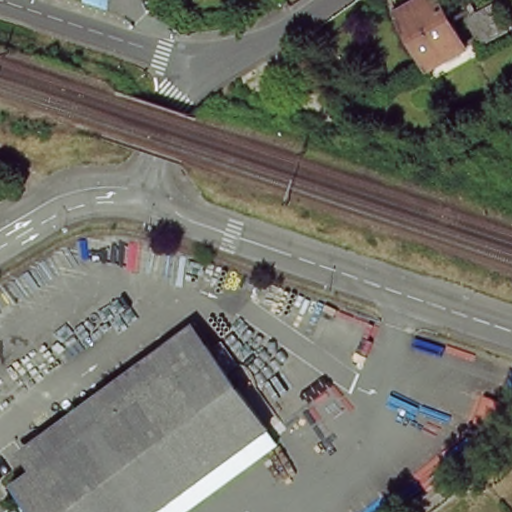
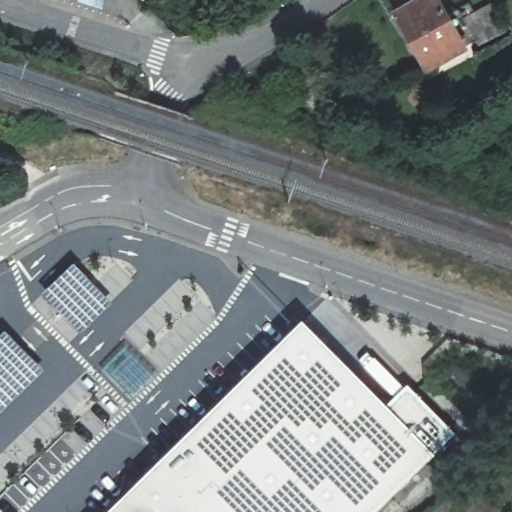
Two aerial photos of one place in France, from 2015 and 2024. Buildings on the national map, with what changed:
unchanged [(396,13),(419,0),(438,0),(465,46),(427,68),(396,13)]
unchanged [(465,19),(493,4),(505,24),(507,29),(479,44),(477,40),(465,19)]
new [(73,264),(111,303),(81,332),(43,294),(73,264)]
new [(377,512),(112,512),(306,323),(395,414),(418,392),(458,434),(377,512)]
demolished [(205,337),(270,424),(151,512),(64,512),(70,508),(33,461),(205,337)]
demolished [(9,478),(33,461),(70,508),(64,512),(34,512),(9,478)]

